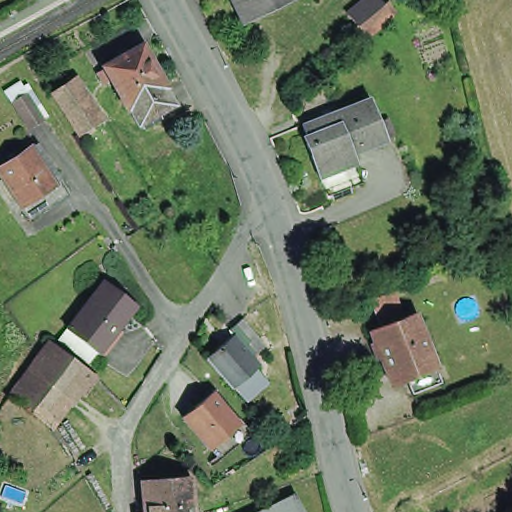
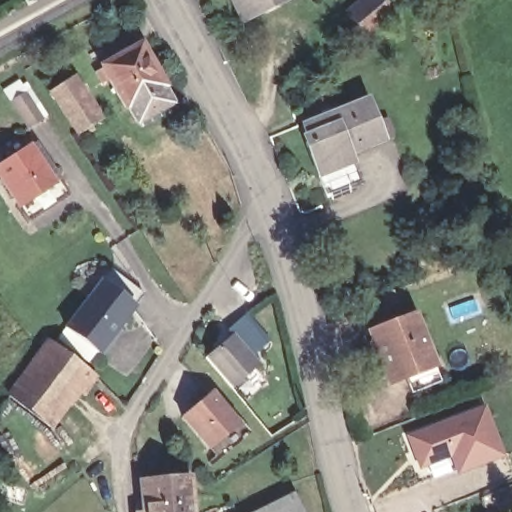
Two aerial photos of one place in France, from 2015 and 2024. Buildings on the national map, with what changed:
unchanged [(231,0),(296,0),(246,27),(231,0)]
unchanged [(367,37),(357,25),(347,14),(363,0),(377,0),(381,5),(390,17),(367,37)]
unchanged [(129,117),(127,118),(103,77),(142,55),(166,97),(164,99),(170,110),(137,130),(129,117)]
unchanged [(79,135),(52,94),(73,80),(100,121),(79,135)]
unchanged [(44,121),(31,129),(14,102),(27,94),(44,121)]
unchanged [(348,193),(324,203),(315,181),(302,149),(306,147),(299,130),(365,104),(374,126),(381,122),(387,137),(379,140),(381,144),(349,157),(361,188),(348,193)]
unchanged [(15,202),(0,178),(0,159),(28,142),(34,151),(40,148),(57,175),(52,179),(60,193),(24,216),(15,202)]
unchanged [(104,358),(70,332),(101,290),(135,315),(104,358)]
unchanged [(410,394),(405,381),(392,386),(370,330),(413,313),(435,369),(440,382),(410,394)]
unchanged [(229,379),(212,359),(238,337),(234,331),(248,318),(265,337),(272,345),(258,358),(265,366),(237,390),(229,379)]
unchanged [(80,398),(70,411),(67,408),(50,432),(46,428),(41,425),(10,401),(33,370),(51,347),(52,348),(94,380),(92,382),(97,386),(93,391),(89,396),(85,402),(80,398)]
unchanged [(102,398),(97,405),(92,401),(96,395),(102,398)]
unchanged [(242,428),(212,453),(187,427),(185,423),(212,397),(242,428)]
new [(457,477),(450,460),(419,471),(406,437),(486,407),(505,458),(457,477)]
unchanged [(142,505),(149,503),(147,486),(197,482),(199,512),(142,512),(142,505)]
demolished [(456,511),(454,510),(450,499),(477,489),(485,509),(477,512),(456,512),(456,511)]
unchanged [(505,500),(507,507),(501,509),(498,502),(505,500)]
unchanged [(292,502),(297,512),(272,512),(292,502)]

